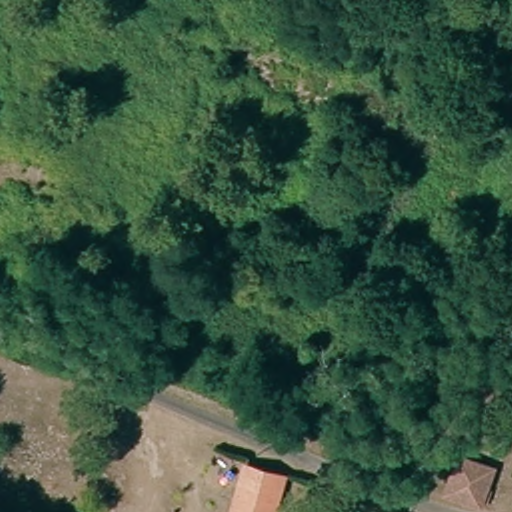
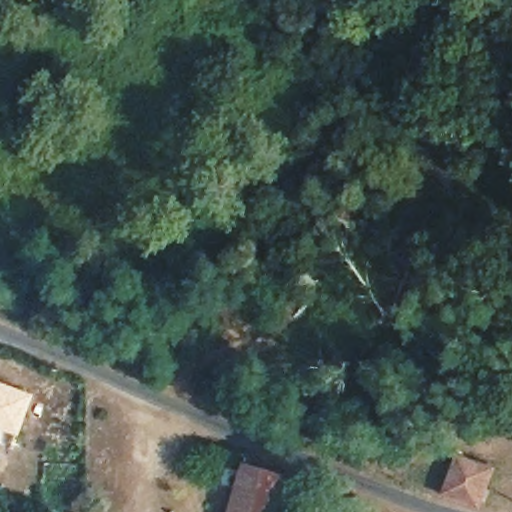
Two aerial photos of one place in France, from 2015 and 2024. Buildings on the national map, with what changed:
new [(21,433),(0,426),(0,380),(34,392),(21,433)]
unchanged [(436,495),(447,457),(484,470),(470,508),(436,495)]
unchanged [(269,512),(228,512),(240,471),(279,482),(269,512)]

